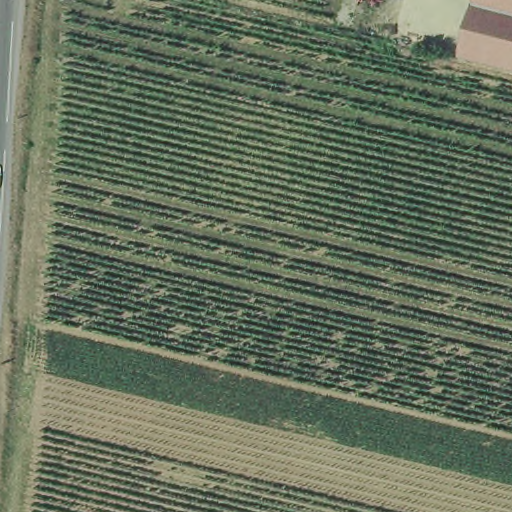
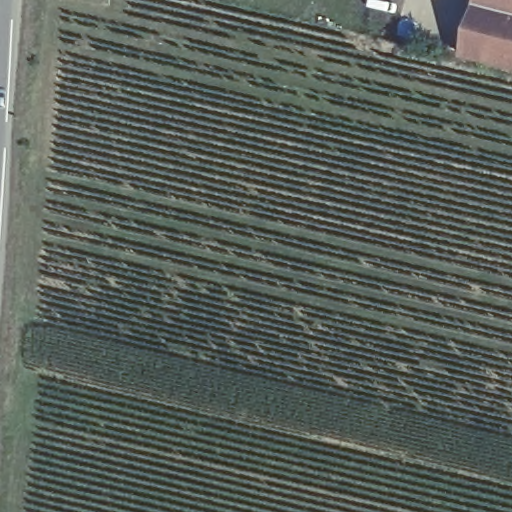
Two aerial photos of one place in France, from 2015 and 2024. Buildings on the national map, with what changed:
unchanged [(512,68),(470,58),(483,0),(512,0),(512,68)]

